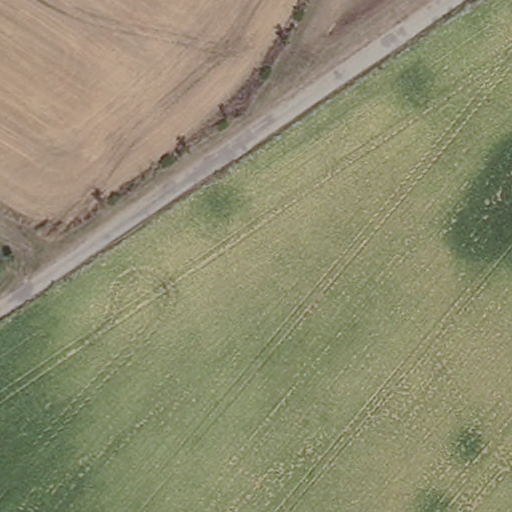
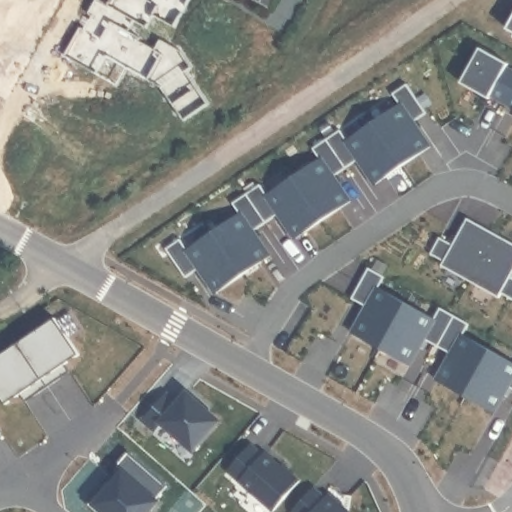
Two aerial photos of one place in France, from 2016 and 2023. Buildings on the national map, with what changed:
new [(512,9),(512,35),(501,29),(512,9)]
new [(508,61),(512,63),(512,94),(494,84),(492,90),(463,76),(483,40),(512,55),(508,61)]
new [(165,248),(177,239),(186,251),(241,211),(233,202),(258,184),(265,194),(319,157),(312,147),(340,129),(347,138),(400,101),(393,92),(406,82),(426,111),(411,120),(428,144),(373,181),(357,157),(330,176),(348,200),(295,237),(278,213),(252,230),(269,255),(216,291),(197,266),(184,276),(165,248)]
new [(512,260),(508,268),(512,270),(512,293),(500,286),(497,292),(438,259),(443,253),(431,247),(440,233),(450,240),(466,213),(512,238),(512,260)]
new [(377,284),(433,315),(440,303),(467,318),(460,329),(512,357),(512,380),(509,378),(493,403),(436,373),(450,348),(423,332),(407,357),(352,327),(365,302),(351,293),(367,263),(384,272),(377,284)]
new [(59,312),(82,347),(74,353),(80,361),(23,400),(17,393),(10,399),(0,384),(0,354),(59,312)]
new [(220,422),(195,450),(163,422),(157,430),(145,420),(168,394),(180,406),(190,395),(220,422)]
new [(1,423),(0,424),(0,423),(1,423)]
new [(251,446),(264,457),(267,453),(300,481),(276,511),(231,471),(251,446)]
new [(116,485),(122,476),(114,469),(127,452),(167,488),(154,505),(156,507),(152,512),(95,512),(91,507),(111,481),(116,485)]
new [(330,494),(343,506),(340,509),(343,512),(294,512),(315,487),(327,497),(330,494)]

